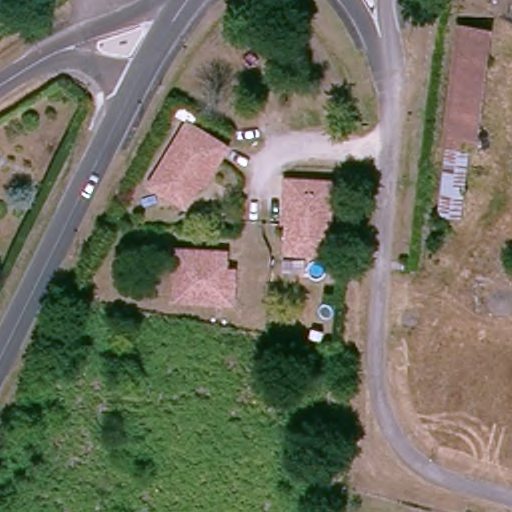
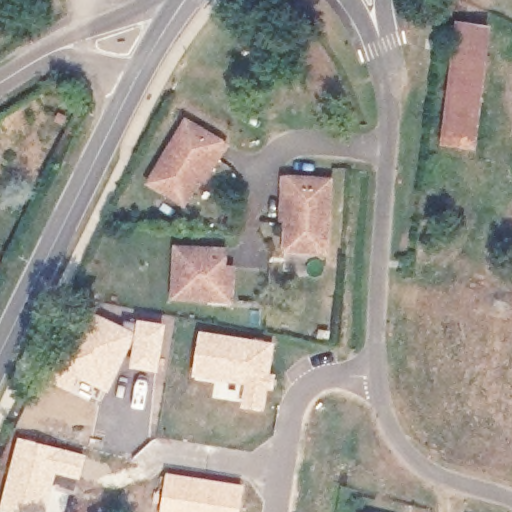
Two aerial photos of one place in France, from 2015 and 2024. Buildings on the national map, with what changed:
unchanged [(458,17),(491,21),(476,144),(444,138),(458,17)]
unchanged [(161,191),(146,181),(182,119),(218,141),(225,146),(207,176),(201,173),(187,198),(182,206),(161,191)]
unchanged [(289,242),(288,218),(282,216),(284,180),(293,179),(330,183),(328,257),(309,255),(288,254),(289,242)]
unchanged [(205,302),(172,295),(178,243),(228,251),(225,267),(234,269),(232,296),(231,305),(205,302)]
new [(91,311),(134,331),(127,353),(108,392),(59,371),(91,311)]
new [(134,331),(137,319),(166,324),(157,372),(129,367),(131,354),(127,353),(134,331)]
new [(199,329),(275,343),(264,411),(240,408),(243,384),(192,377),(199,329)]
new [(64,512),(0,512),(0,504),(18,436),(87,454),(79,480),(56,474),(52,488),(69,493),(64,512)]
new [(166,472),(244,484),(239,512),(159,512),(166,472)]

